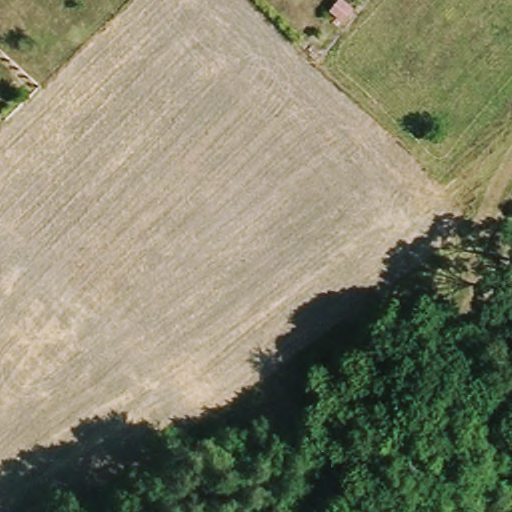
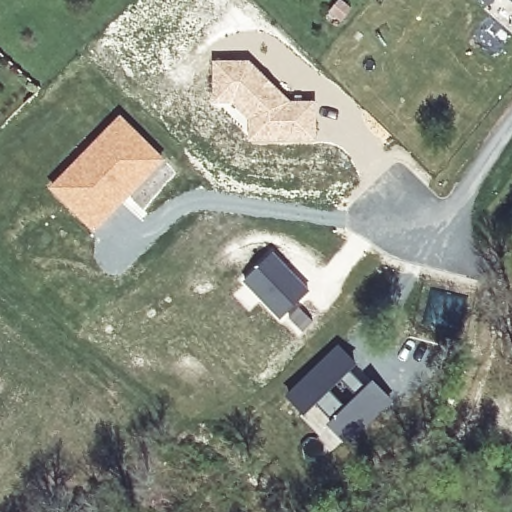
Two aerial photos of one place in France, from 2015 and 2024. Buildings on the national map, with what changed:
new [(485,0),(492,0),(489,4),(485,0)]
new [(249,59),(291,100),(316,100),(317,141),(248,141),(246,121),(244,116),(231,104),(213,102),(212,60),(249,59)]
new [(271,250),(310,290),(297,303),(314,321),(302,332),(285,314),(280,319),(241,280),(271,250)]
new [(286,394),(339,344),(357,362),(374,380),(392,400),(347,445),(328,423),(332,419),(317,401),(305,413),(286,394)]

